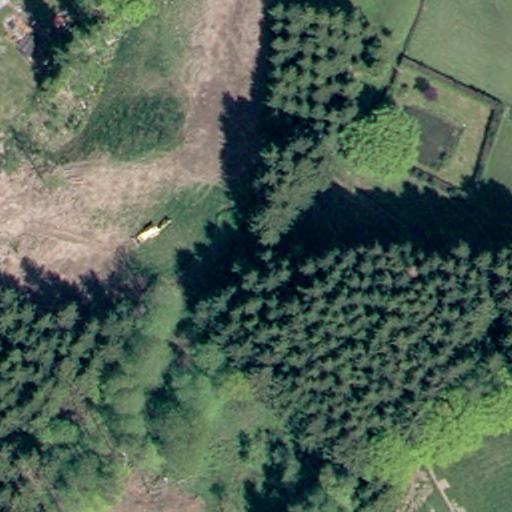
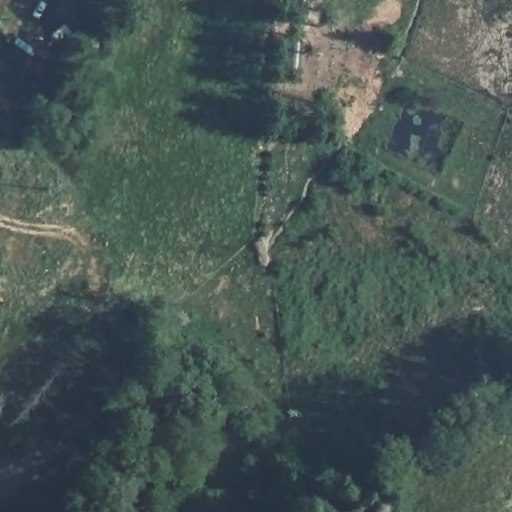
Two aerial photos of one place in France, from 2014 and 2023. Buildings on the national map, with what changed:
[]

